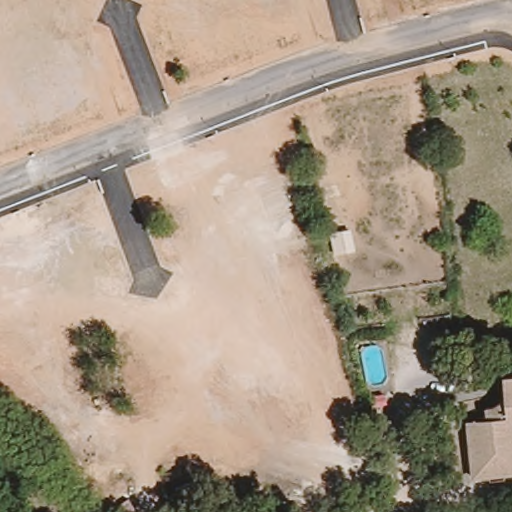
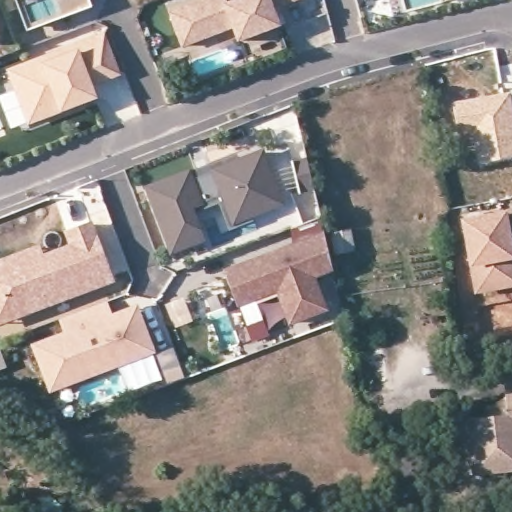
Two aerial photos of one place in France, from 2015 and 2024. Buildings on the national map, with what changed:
new [(17,0),(91,0),(93,6),(65,18),(63,14),(31,25),(27,26),(20,9),(17,0)]
new [(225,0),(226,5),(241,0),(298,0),(273,9),(280,26),(240,42),(235,28),(184,48),(171,14),(207,0),(225,0)]
new [(119,75),(90,85),(95,99),(30,124),(17,89),(10,72),(28,65),(105,36),(119,75)]
new [(512,103),(512,158),(480,164),(474,131),(457,134),(451,103),(510,93),(512,103)]
new [(191,177),(237,159),(239,164),(264,154),(283,205),(235,224),(225,197),(191,209),(203,241),(172,253),(148,189),(190,174),(191,177)]
new [(307,158),(315,191),(300,194),(292,162),(307,158)]
demolished [(340,213),(320,218),(315,187),(337,182),(340,213)]
new [(471,222),(512,215),(512,287),(484,292),(471,222)]
new [(10,275),(43,263),(42,259),(73,247),(68,234),(91,225),(112,282),(10,319),(1,294),(10,275)]
new [(325,235),(333,270),(314,278),(326,310),(291,323),(279,290),(239,305),(226,272),(325,235)]
new [(38,249),(42,259),(43,263),(10,275),(1,294),(10,319),(0,324),(0,263),(38,249)]
new [(44,366),(37,347),(70,334),(63,318),(106,302),(112,319),(138,309),(141,316),(154,352),(119,365),(53,390),(44,366)]
new [(2,354),(11,377),(0,381),(0,355),(2,354)]
unchanged [(475,423),(490,421),(489,403),(498,401),(502,394),(511,393),(509,374),(512,374),(512,468),(508,468),(497,470),(480,471),(475,423)]

